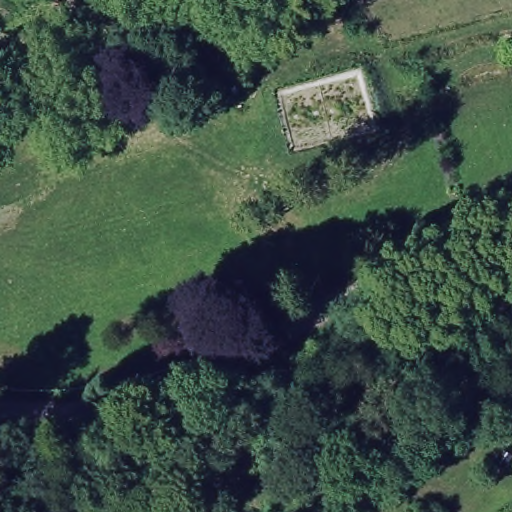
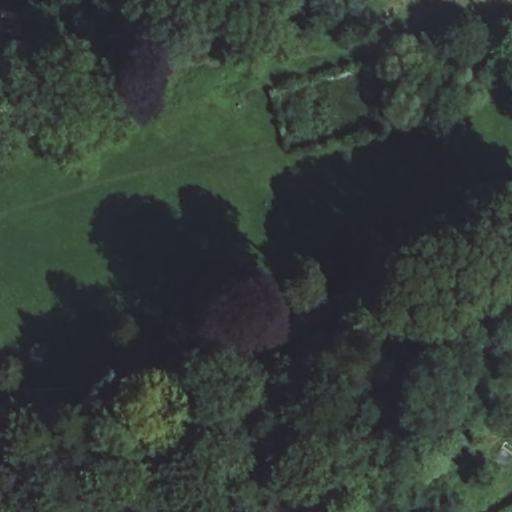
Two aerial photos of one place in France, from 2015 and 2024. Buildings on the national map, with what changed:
[]

